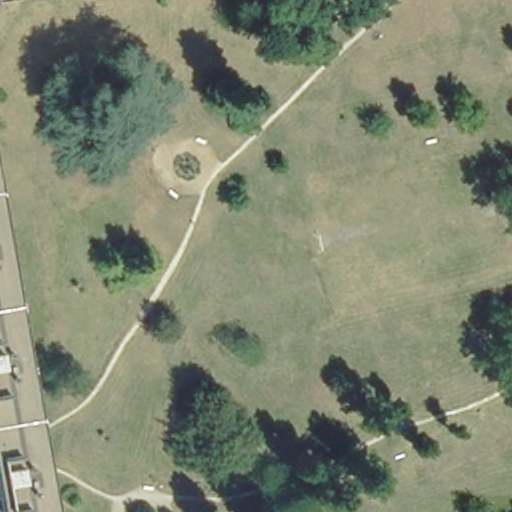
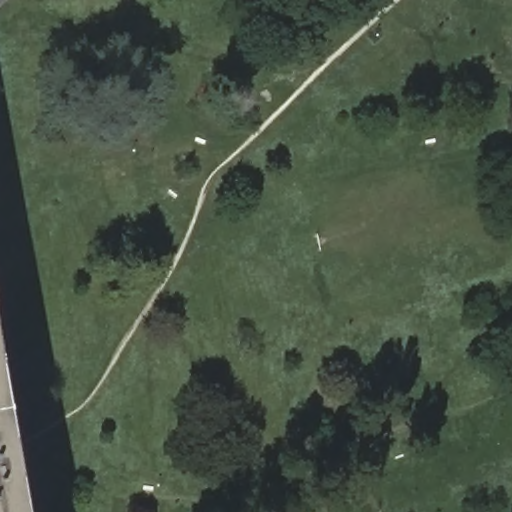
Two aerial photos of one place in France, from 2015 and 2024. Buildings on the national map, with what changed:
unchanged [(0,512),(0,462),(8,512),(0,512)]

